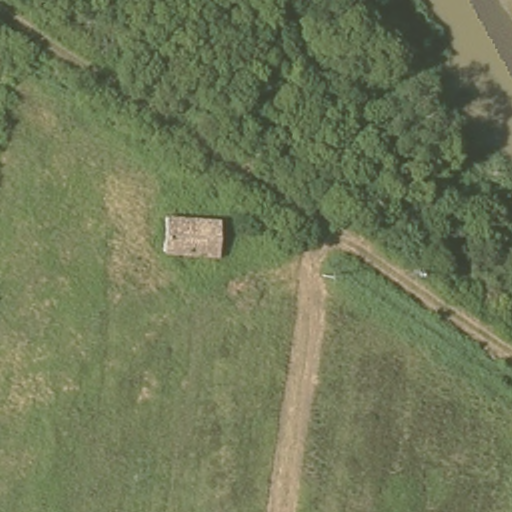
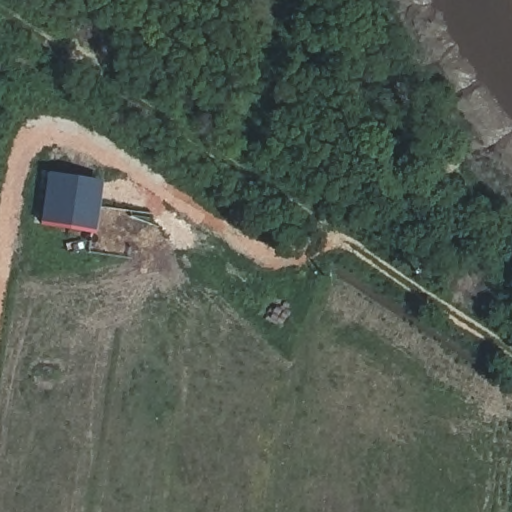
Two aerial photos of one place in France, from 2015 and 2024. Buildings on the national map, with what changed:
new [(45,173),(101,180),(94,234),(38,226),(45,173)]
demolished [(161,257),(161,217),(217,220),(215,258),(161,257)]

